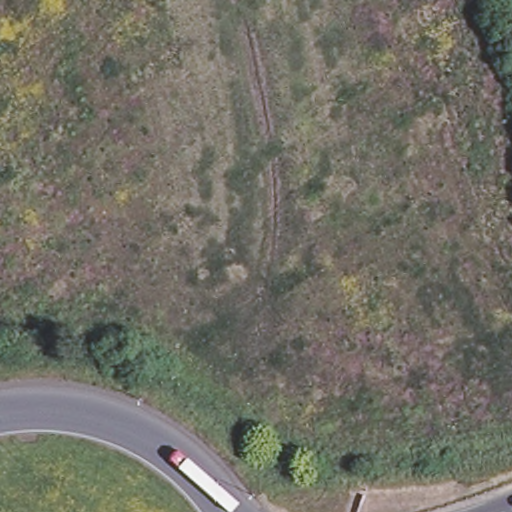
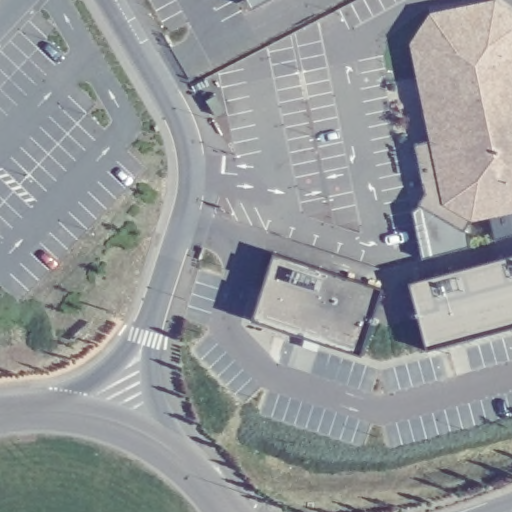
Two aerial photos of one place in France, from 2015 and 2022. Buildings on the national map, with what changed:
new [(247,0),(271,0),(252,9),(247,0)]
new [(411,45),(429,14),(495,0),(512,10),(512,57),(416,76),(411,45)]
new [(425,191),(413,143),(429,139),(416,76),(512,57),(512,210),(469,218),(461,229),(419,203),(426,191),(425,191)]
new [(271,251),(381,287),(359,355),(249,319),(271,251)]
new [(512,253),(512,326),(424,349),(406,281),(512,253)]

